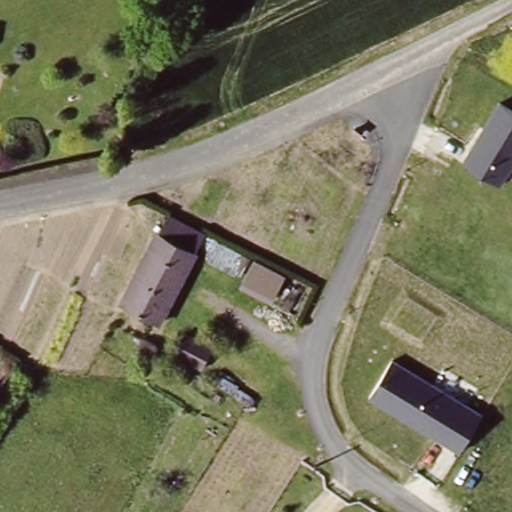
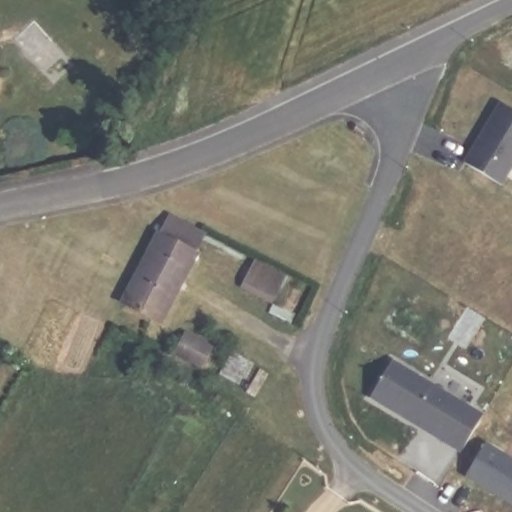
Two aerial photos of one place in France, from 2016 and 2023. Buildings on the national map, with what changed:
unchanged [(512,107),(512,170),(505,182),(468,165),(502,101),(512,107)]
unchanged [(156,239),(167,219),(203,237),(192,257),(195,258),(157,327),(118,306),(155,238),(156,239)]
unchanged [(292,275),(282,299),(247,284),(260,261),(292,275)]
unchanged [(210,348),(200,367),(172,352),(182,333),(210,348)]
unchanged [(484,415),(465,451),(370,398),(391,361),(484,415)]
new [(485,442),(512,459),(512,504),(465,476),(485,442)]

